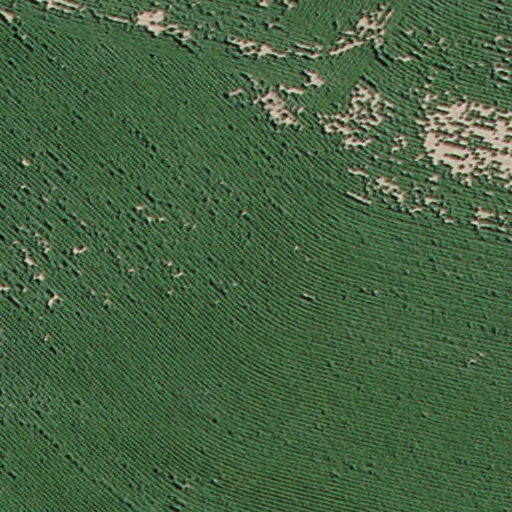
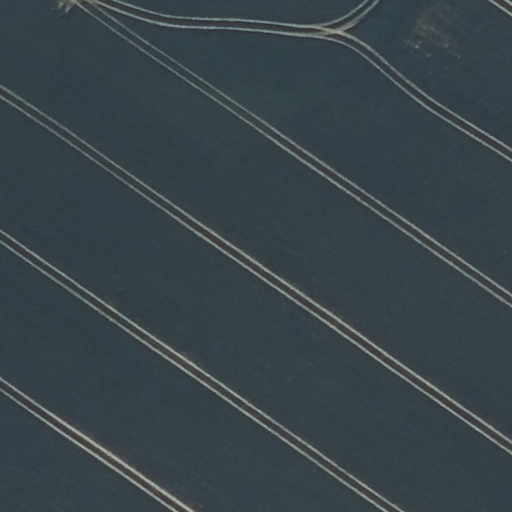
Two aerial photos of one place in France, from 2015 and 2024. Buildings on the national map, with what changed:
[]

